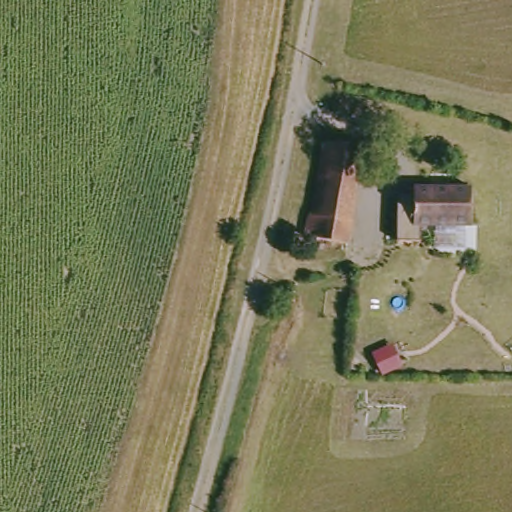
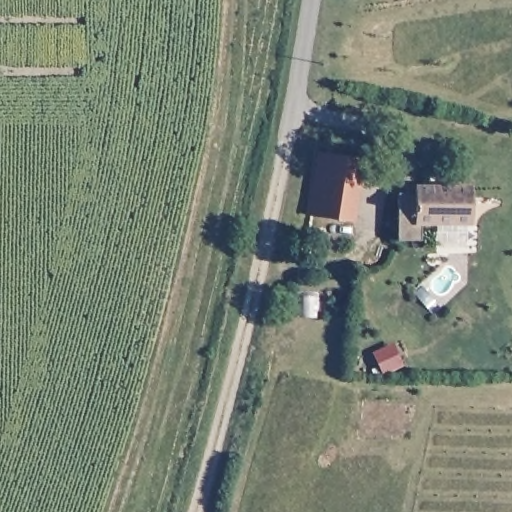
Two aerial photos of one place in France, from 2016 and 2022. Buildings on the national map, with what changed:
unchanged [(363,147),(345,243),(303,235),(321,139),(363,147)]
unchanged [(466,182),(465,221),(407,221),(408,181),(466,182)]

